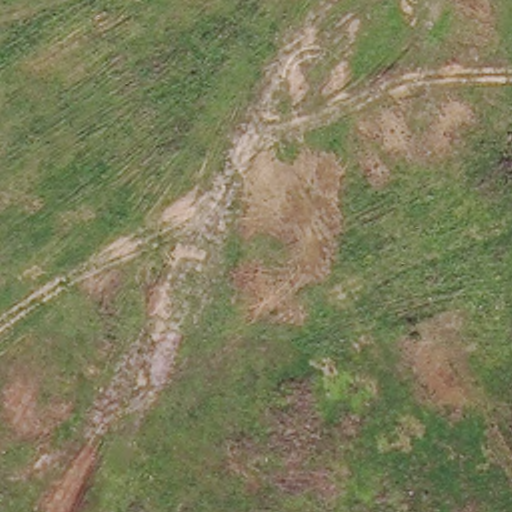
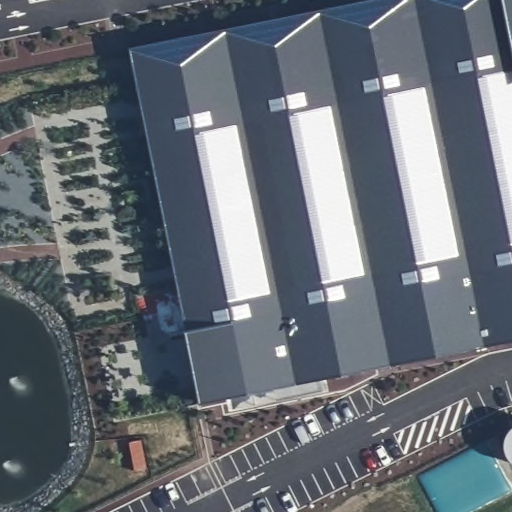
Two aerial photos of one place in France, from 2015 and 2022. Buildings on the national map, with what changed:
new [(203,404),(132,47),(369,0),(512,0),(512,341),(203,404)]

